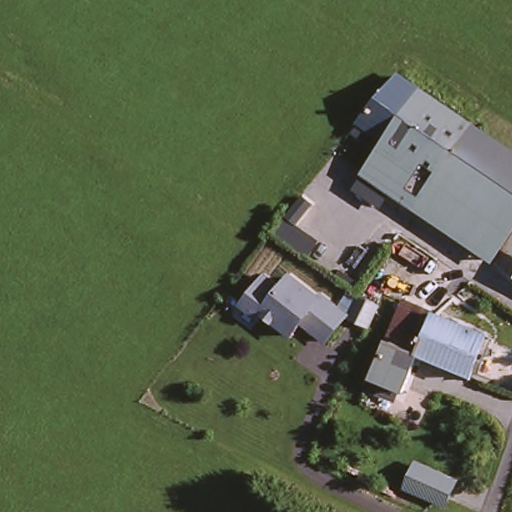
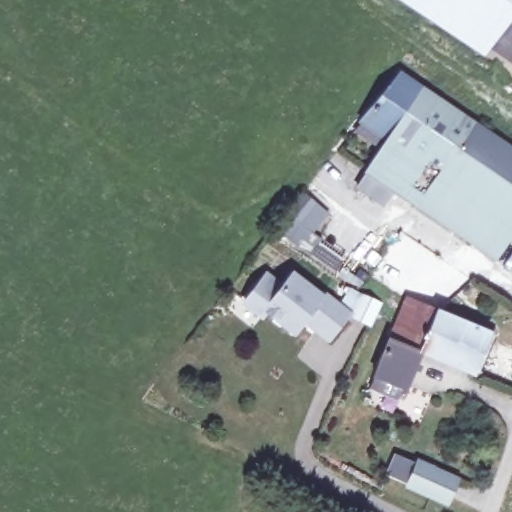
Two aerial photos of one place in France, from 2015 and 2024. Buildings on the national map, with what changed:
new [(395,0),(512,0),(512,15),(482,57),(395,0)]
unchanged [(401,72),(421,86),(388,136),(362,119),(401,72)]
unchanged [(421,86),(473,121),(457,146),(417,204),(365,170),(388,136),(421,86)]
unchanged [(457,146),(473,121),(512,147),(512,228),(494,255),(417,204),(457,146)]
unchanged [(492,262),(391,199),(383,210),(359,186),(365,170),(417,204),(494,255),(497,257),(492,262)]
unchanged [(284,214),(300,195),(310,203),(294,222),(284,214)]
unchanged [(265,279),(281,291),(291,278),(320,300),(322,297),(347,317),(327,342),(312,331),(317,326),(307,318),(292,337),(264,315),(260,320),(243,307),(265,279)]
unchanged [(427,332),(395,318),(406,292),(490,326),(472,367),(420,346),(427,332)]
unchanged [(379,307),(373,318),(369,327),(350,319),(360,298),(360,297),(379,307)]
unchanged [(382,379),(380,383),(370,379),(373,371),(395,318),(427,332),(420,346),(404,383),(400,382),(397,386),(382,379)]
unchanged [(452,496),(412,479),(422,456),(462,473),(452,496)]

